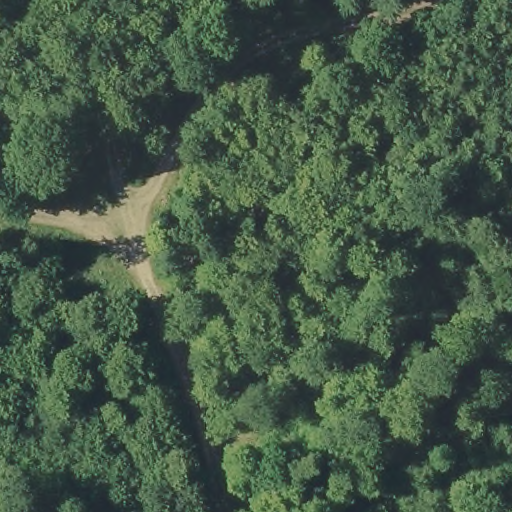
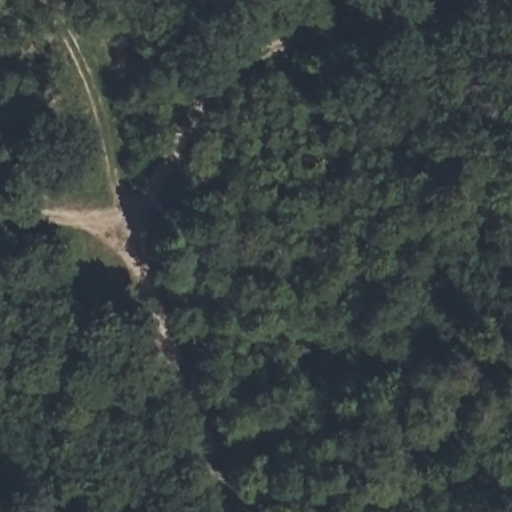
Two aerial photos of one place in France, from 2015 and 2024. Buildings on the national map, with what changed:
unchanged [(20,144),(0,153),(0,125),(7,121),(20,144)]

